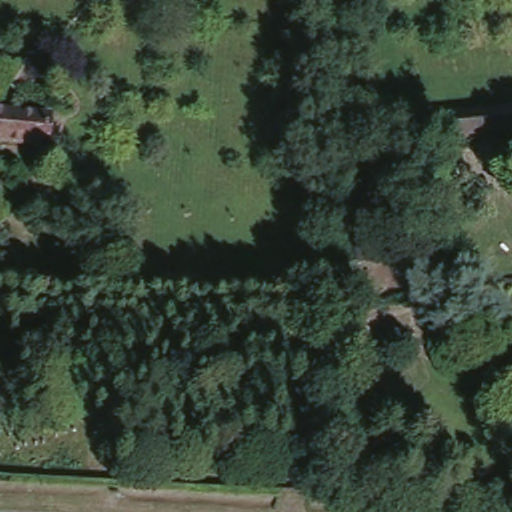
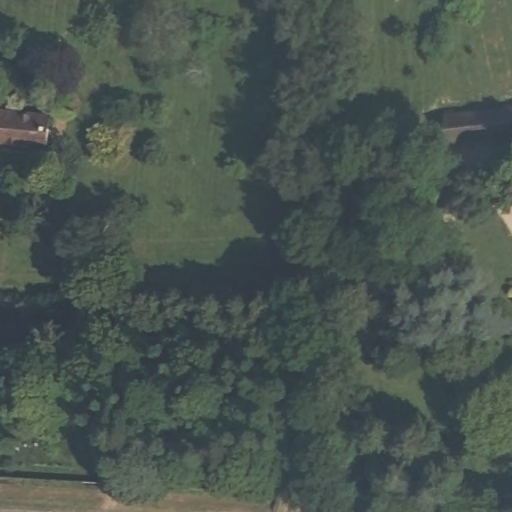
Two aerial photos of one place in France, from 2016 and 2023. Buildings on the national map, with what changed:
unchanged [(512,109),(512,133),(446,140),(445,116),(512,109)]
unchanged [(50,146),(0,142),(0,112),(54,118),(50,146)]
unchanged [(372,165),(367,220),(350,219),(353,191),(337,190),(337,174),(361,174),(362,165),(372,165)]
unchanged [(365,222),(361,262),(336,259),(341,220),(365,222)]

